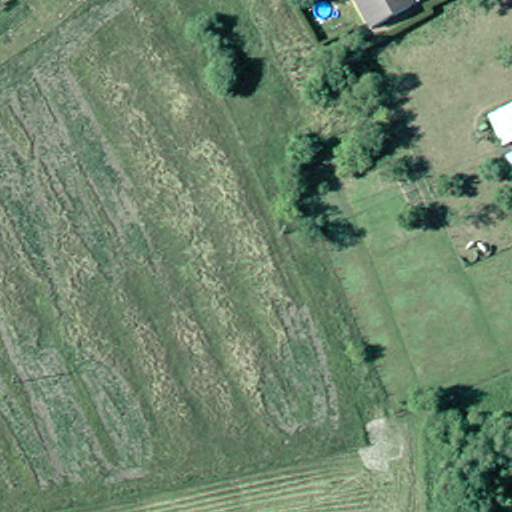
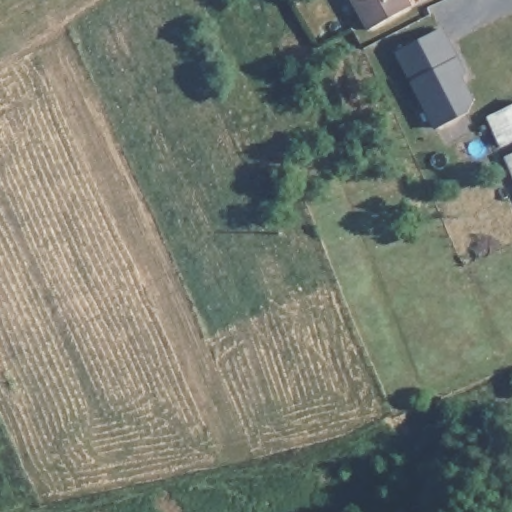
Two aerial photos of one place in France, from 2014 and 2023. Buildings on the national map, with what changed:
unchanged [(364,23),(352,0),(404,0),(404,1),(364,23)]
new [(467,71),(465,73),(476,94),(471,110),(435,127),(411,80),(395,51),(444,25),(459,55),(467,71)]
unchanged [(512,108),(512,139),(501,144),(489,118),(512,108)]
unchanged [(501,151),(512,146),(512,175),(510,172),(501,151)]

